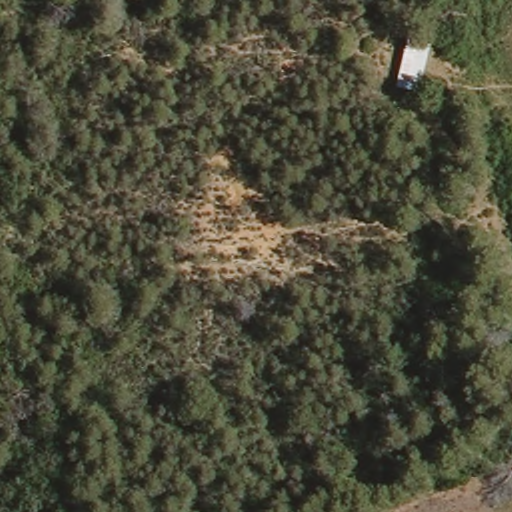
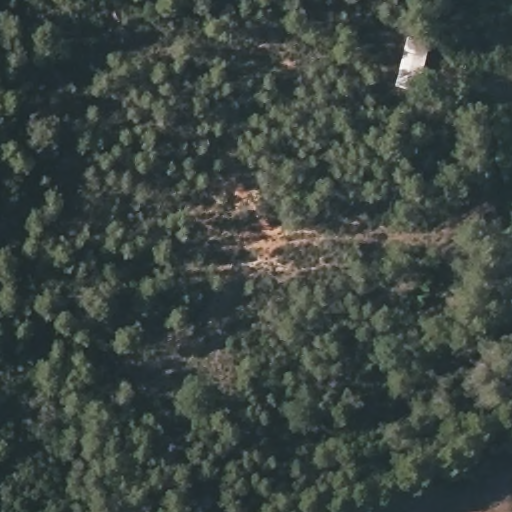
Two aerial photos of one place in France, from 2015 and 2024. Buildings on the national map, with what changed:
unchanged [(434,44),(421,97),(394,92),(406,39),(434,44)]

